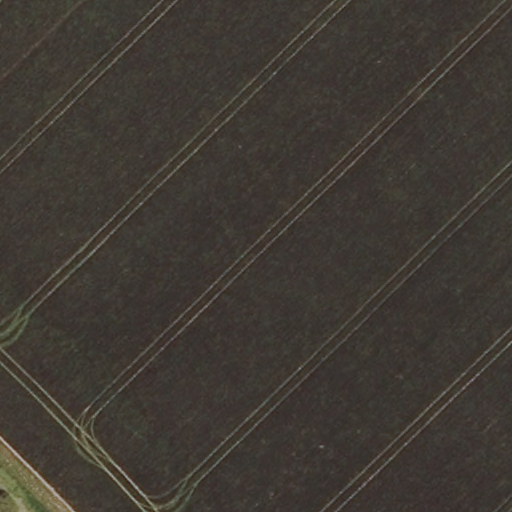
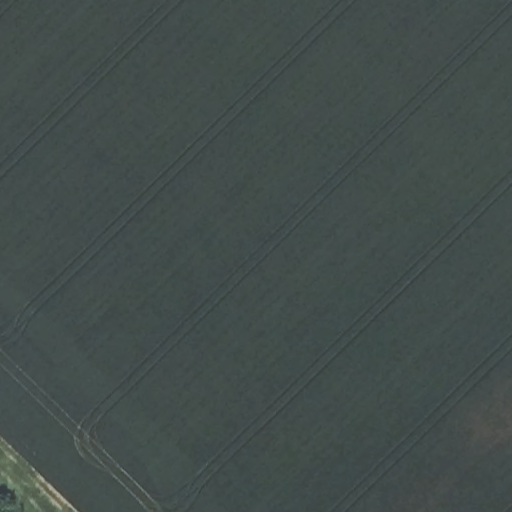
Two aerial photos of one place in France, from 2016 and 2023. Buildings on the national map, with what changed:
[]

